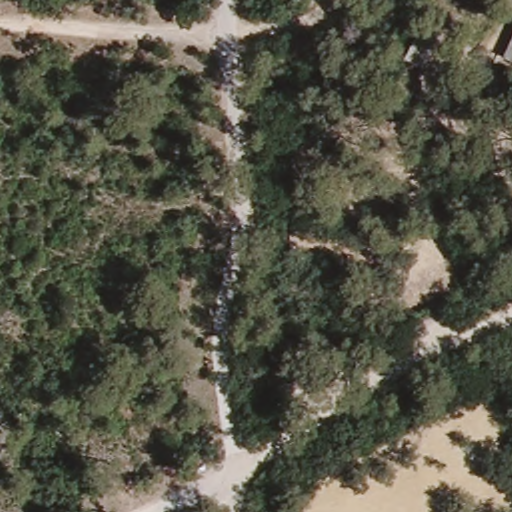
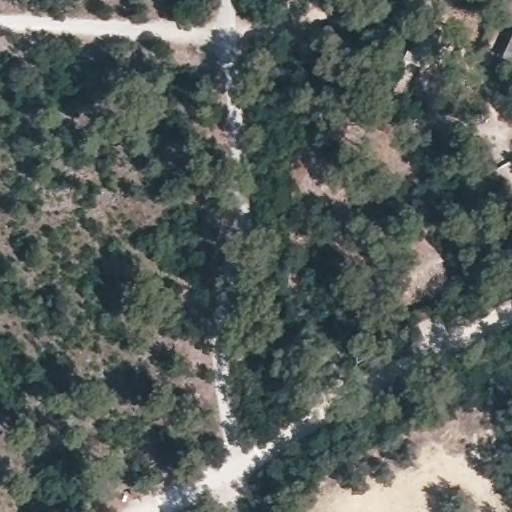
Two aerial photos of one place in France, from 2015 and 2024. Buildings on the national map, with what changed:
unchanged [(424,67),(404,57),(422,21),(441,31),(424,67)]
unchanged [(512,35),(512,61),(502,56),(512,35)]

